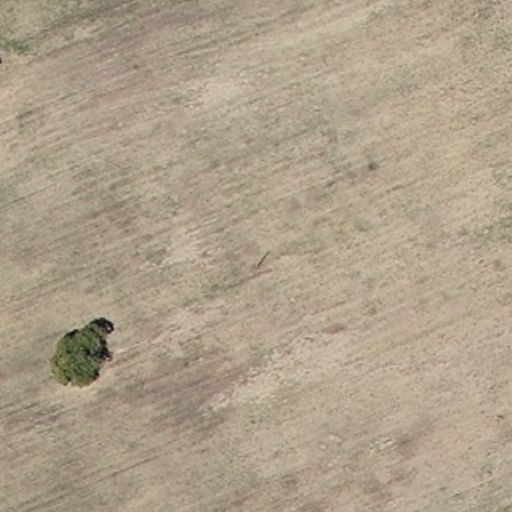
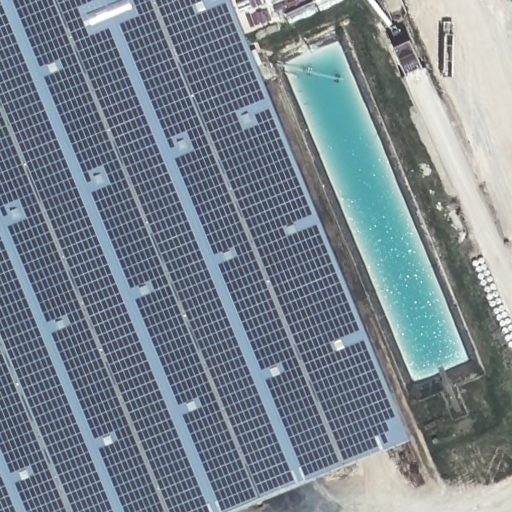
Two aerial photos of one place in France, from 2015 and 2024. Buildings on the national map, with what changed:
new [(0,512),(0,0),(227,0),(401,421),(175,512),(0,512)]

